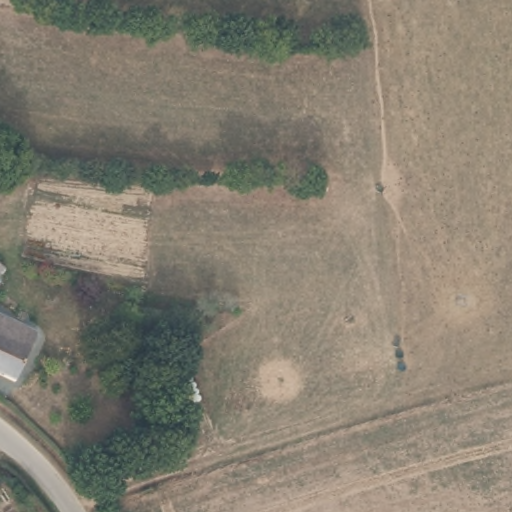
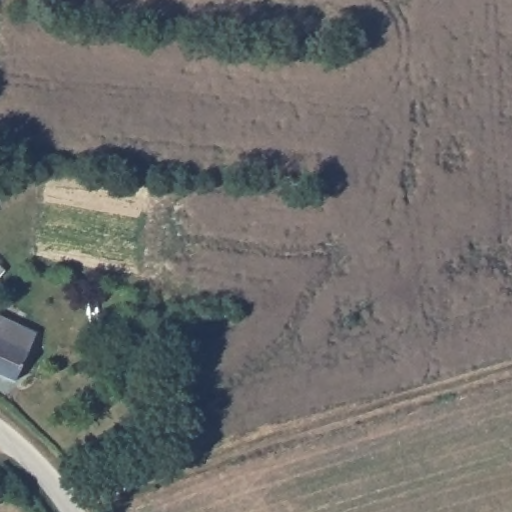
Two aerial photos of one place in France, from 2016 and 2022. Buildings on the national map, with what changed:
unchanged [(20,325),(38,332),(21,372),(17,381),(0,374),(0,317),(21,325),(20,325)]

